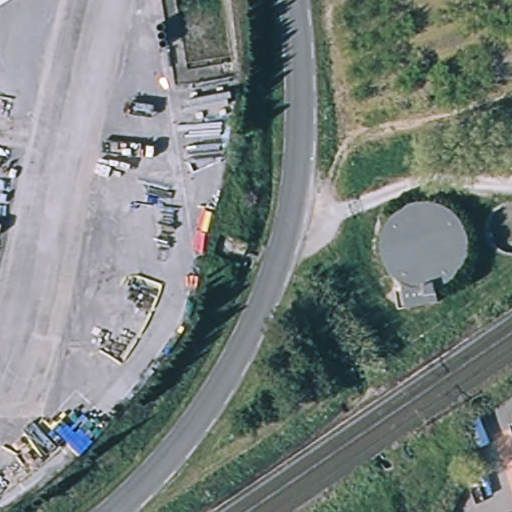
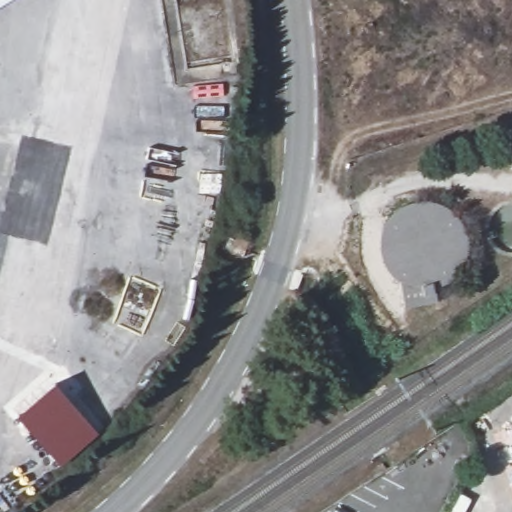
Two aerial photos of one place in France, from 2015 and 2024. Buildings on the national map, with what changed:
unchanged [(0,11),(0,0),(17,0),(0,11)]
new [(62,464),(20,415),(57,382),(100,431),(62,464)]
unchanged [(512,423),(512,431),(510,424),(512,423)]

